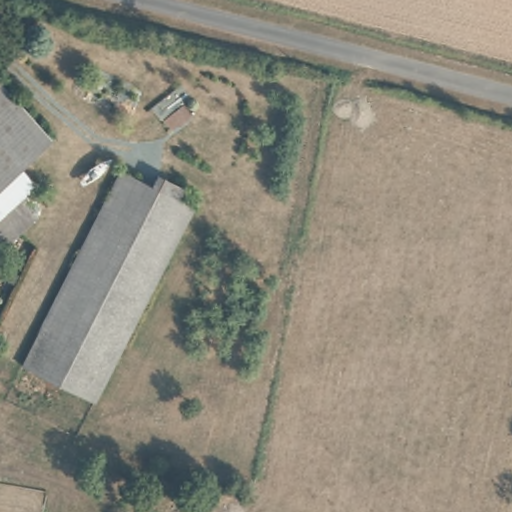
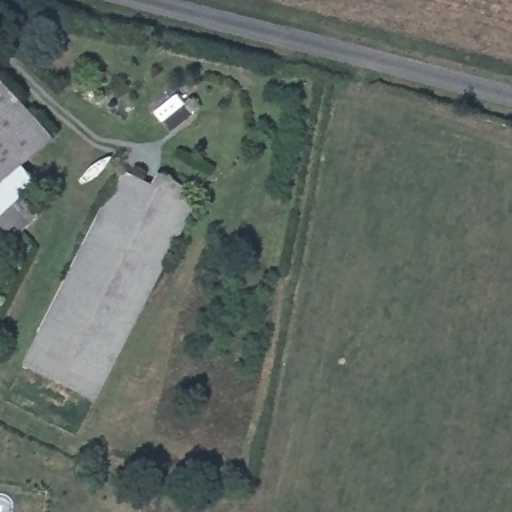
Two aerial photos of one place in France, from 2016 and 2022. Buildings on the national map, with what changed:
unchanged [(53,135),(23,160),(35,178),(22,193),(0,210),(0,77),(53,135)]
unchanged [(157,169),(182,182),(178,190),(194,199),(93,401),(21,369),(122,161),(155,177),(157,169)]
unchanged [(37,212),(0,243),(0,210),(22,193),(37,212)]

